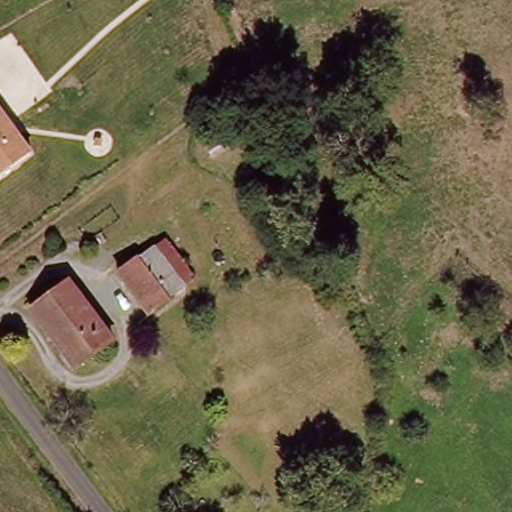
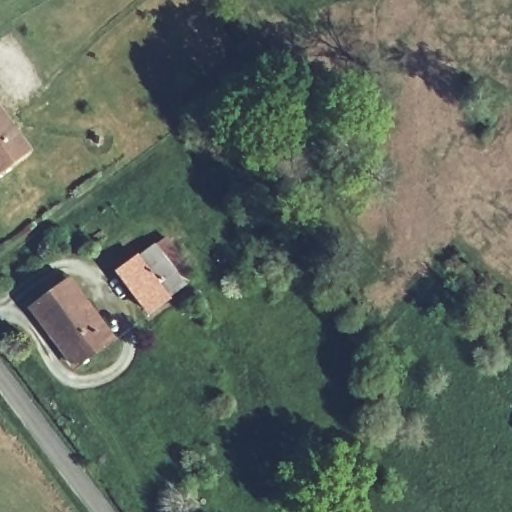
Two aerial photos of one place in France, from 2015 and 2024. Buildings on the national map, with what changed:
unchanged [(1,175),(0,173),(0,101),(35,149),(1,175)]
unchanged [(145,311),(117,273),(162,240),(190,277),(145,311)]
unchanged [(76,368),(33,313),(69,285),(112,339),(76,368)]

